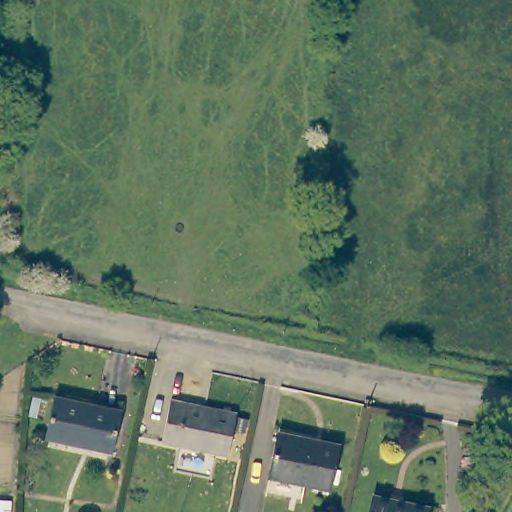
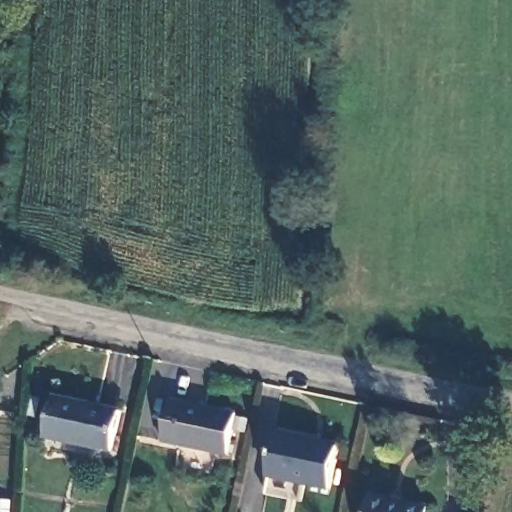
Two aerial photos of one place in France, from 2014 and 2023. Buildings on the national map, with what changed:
unchanged [(113,450),(49,436),(58,398),(122,412),(113,450)]
unchanged [(163,439),(172,398),(237,412),(228,453),(163,439)]
unchanged [(277,429),(339,440),(330,485),(269,474),(277,429)]
unchanged [(427,509),(426,512),(370,512),(373,497),(427,509)]

